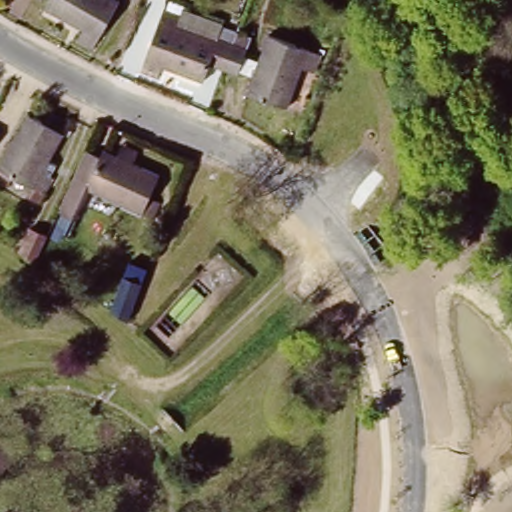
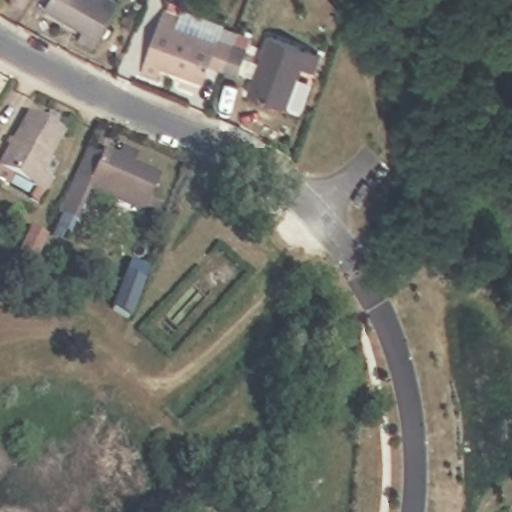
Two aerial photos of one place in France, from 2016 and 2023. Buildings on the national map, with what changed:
unchanged [(46,10),(51,0),(122,0),(123,1),(104,40),(98,51),(83,45),(88,31),(46,10)]
unchanged [(146,56),(160,18),(165,5),(181,11),(183,8),(223,24),(219,36),(234,41),(239,28),(254,33),(238,74),(224,69),(208,63),(203,78),(163,62),(158,74),(141,66),(146,56)]
unchanged [(309,50),(322,55),(315,72),(302,67),(287,109),(248,93),(269,35),(309,50)]
unchanged [(34,188),(0,169),(0,159),(25,111),(45,123),(52,111),(68,121),(62,132),(42,173),(53,179),(45,194),(34,188)]
unchanged [(140,210),(95,189),(80,222),(76,221),(70,234),(55,227),(90,146),(99,152),(105,144),(121,153),(127,141),(143,149),(137,161),(157,172),(147,194),(159,199),(151,215),(140,210)]
unchanged [(42,260),(24,248),(40,221),(54,230),(42,260)]
unchanged [(137,309),(122,300),(130,275),(146,281),(137,309)]

